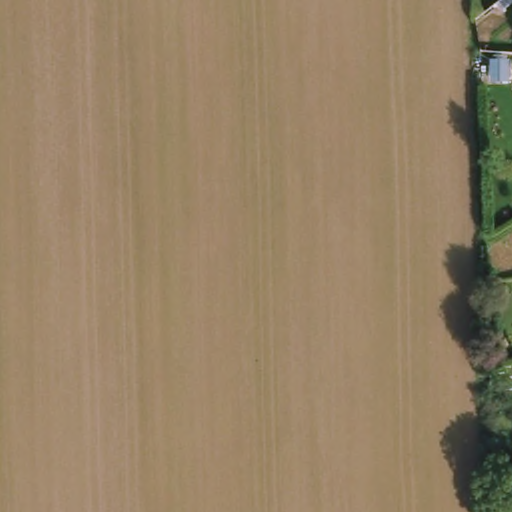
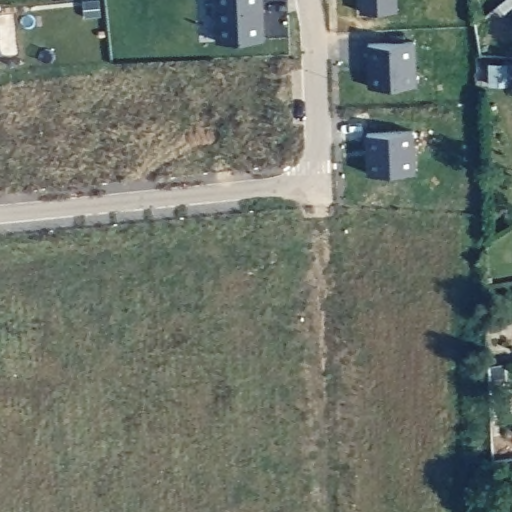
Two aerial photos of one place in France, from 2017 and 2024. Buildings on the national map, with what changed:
new [(216,40),(215,0),(264,0),(266,38),(216,40)]
new [(398,0),(399,9),(359,11),(359,0),(398,0)]
new [(0,51),(0,17),(3,50),(0,51)]
new [(419,83),(369,85),(366,43),(417,40),(419,83)]
new [(416,130),(418,169),(368,173),(366,132),(399,130),(416,130)]

